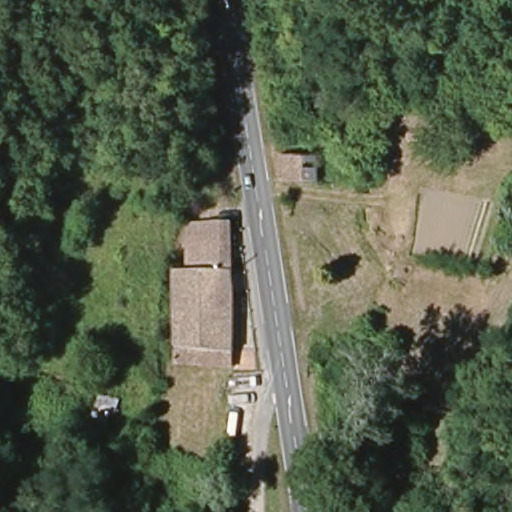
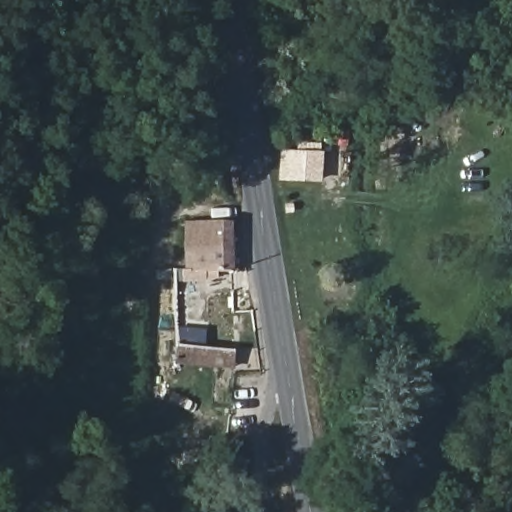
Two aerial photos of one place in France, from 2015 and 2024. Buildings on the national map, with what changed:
unchanged [(319,175),(301,175),(277,174),(278,153),(320,154),(319,175)]
unchanged [(179,271),(190,271),(189,217),(232,216),(237,347),(180,349),(179,271)]

